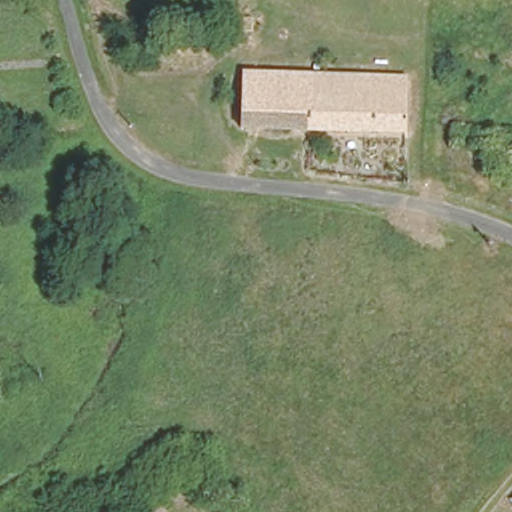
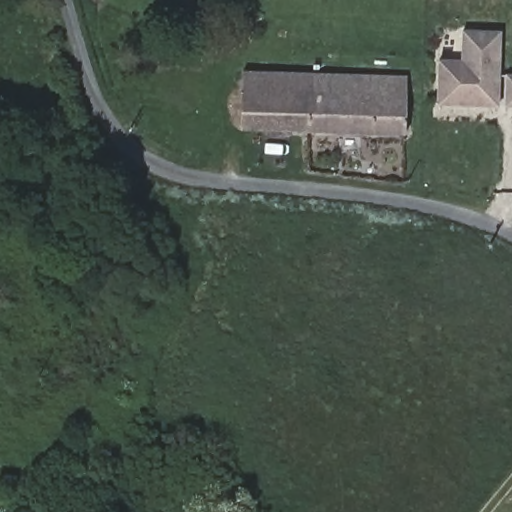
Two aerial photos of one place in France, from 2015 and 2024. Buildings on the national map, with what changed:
new [(437,104),(439,58),(462,59),(462,29),(502,30),(499,105),(437,104)]
new [(512,107),(506,107),(506,73),(512,73),(512,107)]
unchanged [(405,137),(245,135),(245,80),(321,82),(406,83),(405,137)]

